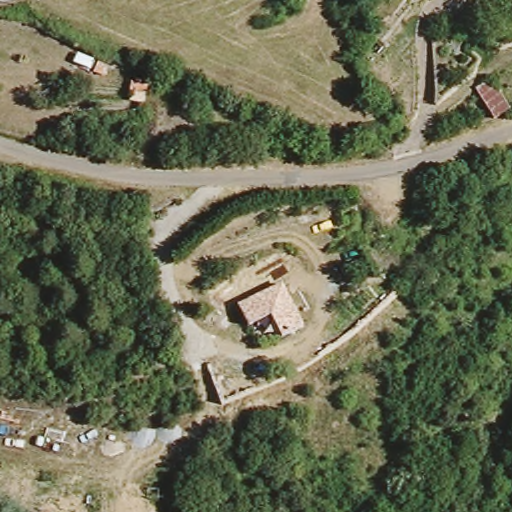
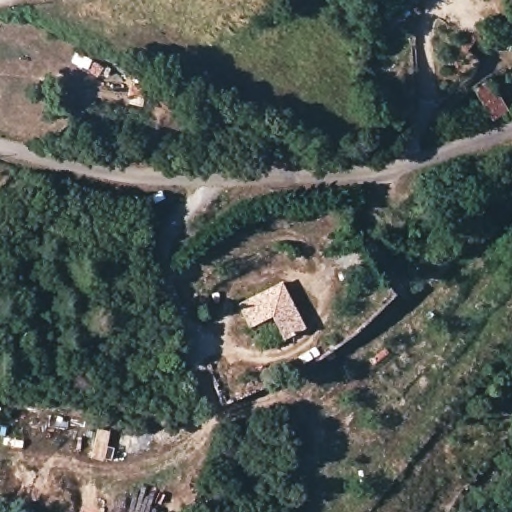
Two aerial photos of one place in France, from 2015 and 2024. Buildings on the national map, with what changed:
unchanged [(506,111),(490,121),(471,89),(487,77),(506,111)]
unchanged [(284,283),(306,331),(257,351),(236,305),(284,283)]

